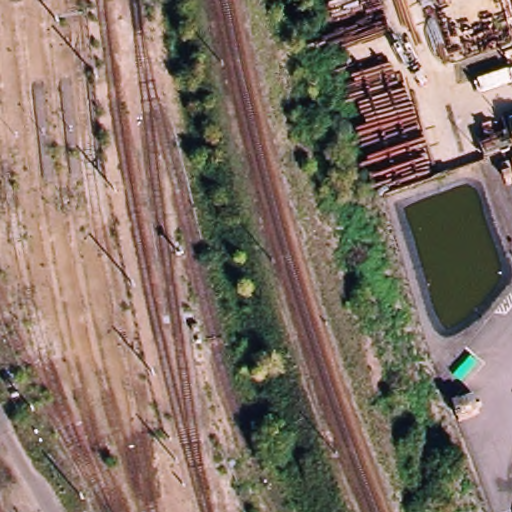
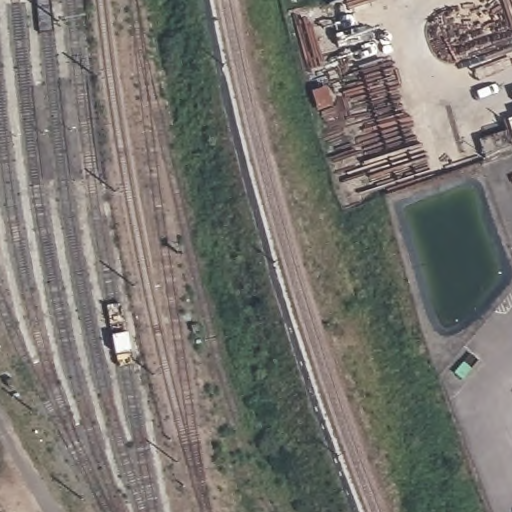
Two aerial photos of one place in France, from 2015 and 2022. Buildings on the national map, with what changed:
[]

